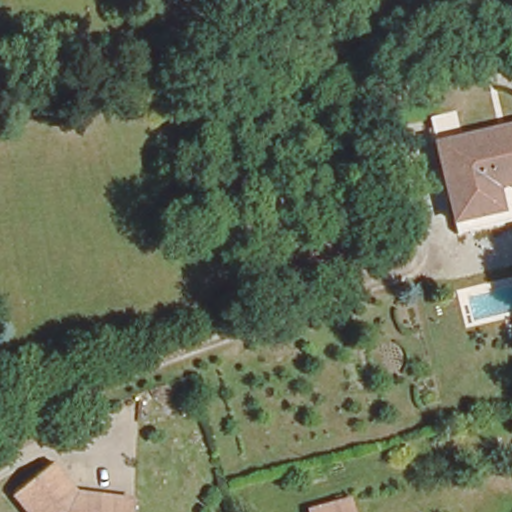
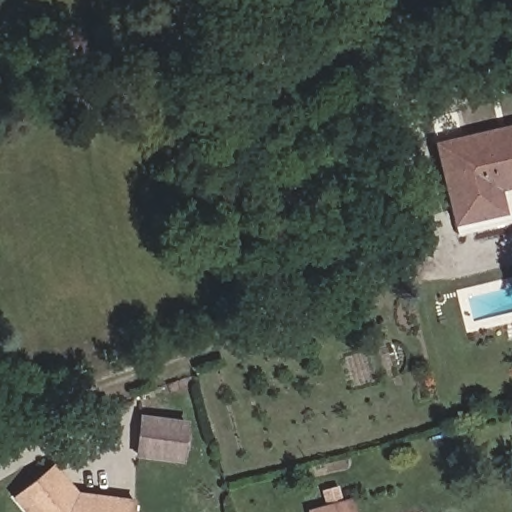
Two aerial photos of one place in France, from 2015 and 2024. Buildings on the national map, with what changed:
unchanged [(460,140),(512,128),(512,212),(455,226),(430,124),(455,117),(460,140)]
new [(182,462),(133,456),(138,413),(187,420),(182,462)]
unchanged [(48,463),(71,490),(131,493),(129,512),(26,512),(8,490),(48,463)]
unchanged [(345,512),(311,512),(342,503),(345,512)]

